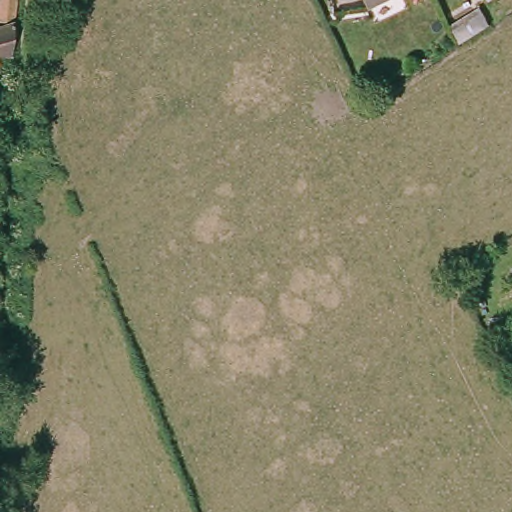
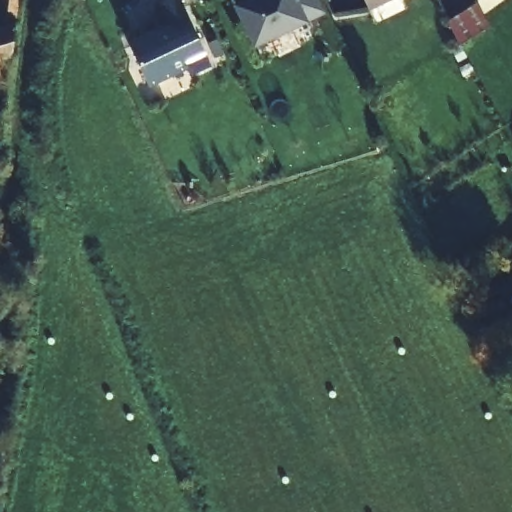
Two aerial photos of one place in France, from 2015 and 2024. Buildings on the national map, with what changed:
unchanged [(0,0),(18,0),(15,27),(17,27),(13,61),(0,65),(0,32),(10,30),(0,28),(0,16),(2,1),(0,0)]
new [(155,32),(170,26),(158,2),(163,0),(181,0),(210,64),(191,72),(188,66),(148,85),(128,42),(154,30),(155,32)]
new [(319,0),(324,10),(304,20),(305,24),(284,34),(282,30),(255,42),(237,4),(246,0),(319,0)]
unchanged [(364,0),(388,0),(368,9),(364,0)]
unchanged [(460,44),(451,26),(480,7),(489,26),(460,44)]
unchanged [(0,90),(0,76),(4,89),(0,90)]

